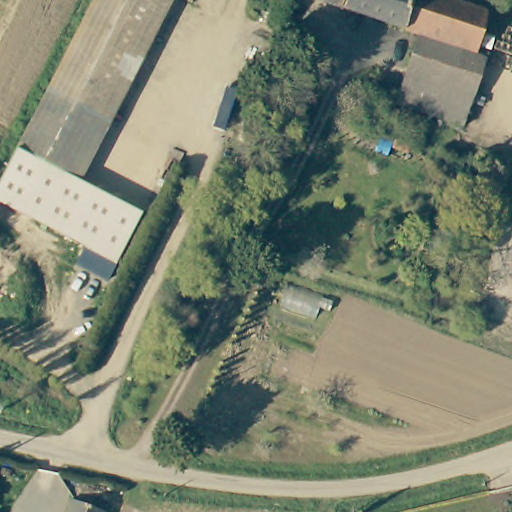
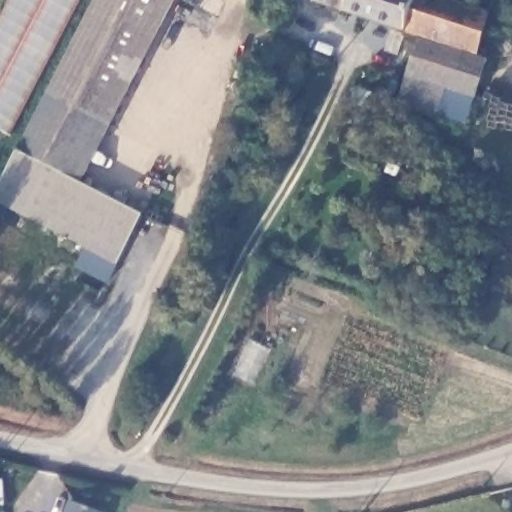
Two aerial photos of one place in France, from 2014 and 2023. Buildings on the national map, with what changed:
new [(11,134),(0,129),(0,14),(7,0),(81,0),(11,134)]
unchanged [(98,0),(175,0),(111,124),(50,92),(98,0)]
unchanged [(312,3),(313,0),(459,0),(491,10),(478,55),(491,59),(469,129),(376,97),(385,68),(405,75),(417,39),(312,3)]
unchanged [(111,124),(76,191),(15,158),(50,92),(111,124)]
unchanged [(143,213),(109,281),(77,265),(86,247),(0,202),(0,188),(15,158),(76,191),(82,181),(143,213)]
unchanged [(97,512),(69,512),(72,504),(97,512)]

